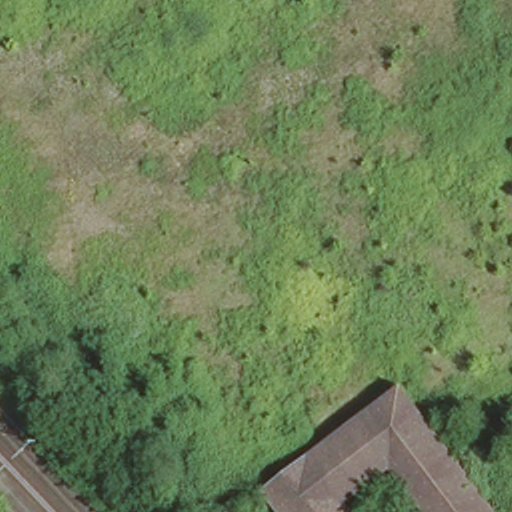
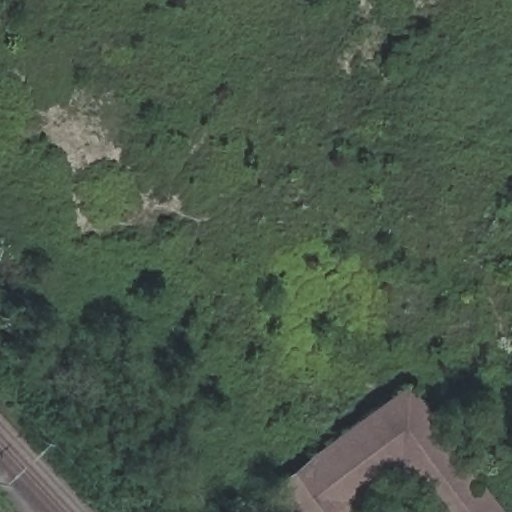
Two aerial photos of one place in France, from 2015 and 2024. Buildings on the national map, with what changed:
unchanged [(503,512),(437,512),(396,459),(347,495),(360,512),(288,512),(267,485),(401,381),(468,466),(503,512)]

